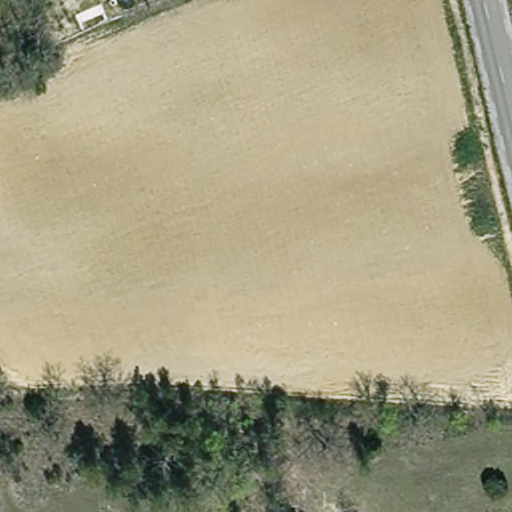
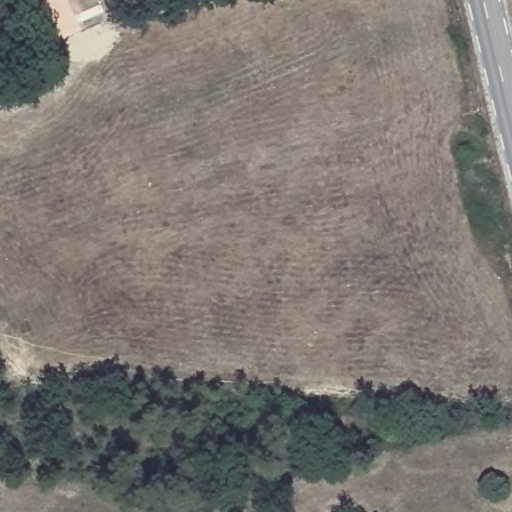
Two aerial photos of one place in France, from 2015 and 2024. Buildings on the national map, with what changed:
[]

